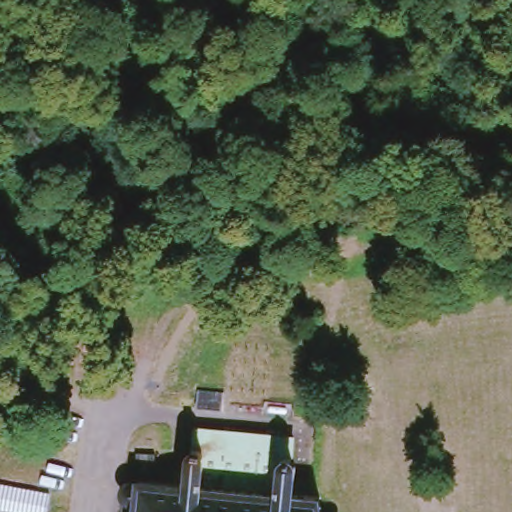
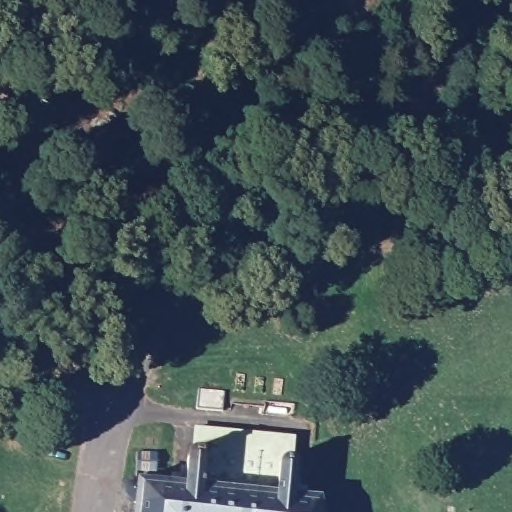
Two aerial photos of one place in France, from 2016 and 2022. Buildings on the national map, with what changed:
unchanged [(142,500),(140,499),(137,498),(135,496),(133,493),(132,492),(132,490),(132,487),(134,483),(135,481),(137,480),(142,478),(145,478),(148,479),(149,477),(195,481),(197,452),(205,450),(206,423),(303,433),(299,458),(305,461),(302,491),(325,492),(328,512),(142,512),(144,500),(142,500)]
demolished [(0,512),(0,481),(56,490),(53,512),(0,512)]

